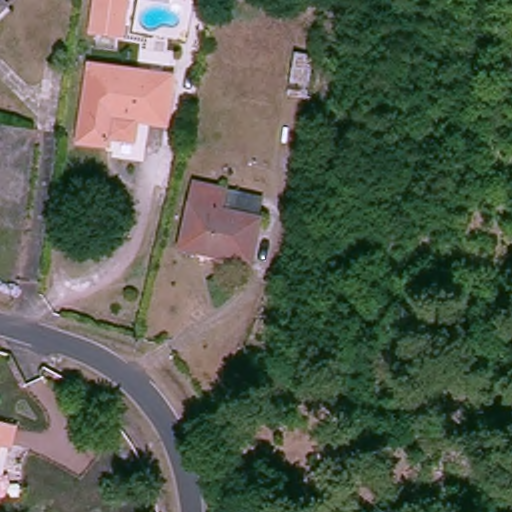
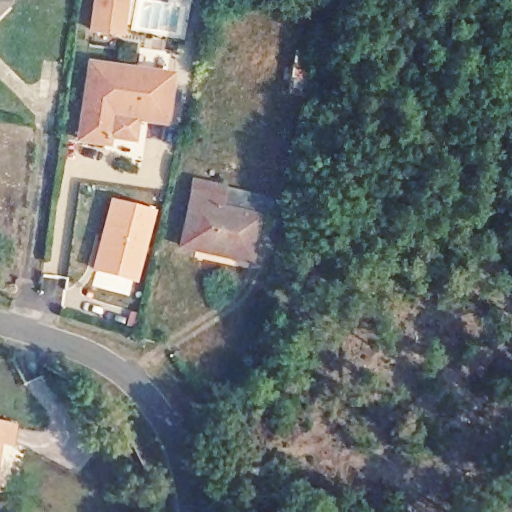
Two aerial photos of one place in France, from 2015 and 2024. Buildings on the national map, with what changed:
unchanged [(16,0),(0,16),(0,0),(16,0)]
unchanged [(89,33),(92,0),(128,0),(122,38),(89,33)]
unchanged [(105,122),(102,134),(76,129),(88,58),(165,69),(160,110),(127,106),(123,125),(105,122)]
unchanged [(230,186),(225,204),(262,214),(257,235),(253,234),(248,253),(187,238),(203,180),(230,186)]
new [(107,198),(156,210),(134,284),(131,284),(128,295),(90,285),(93,273),(90,272),(107,198)]
unchanged [(11,443),(0,440),(0,421),(16,424),(11,443)]

